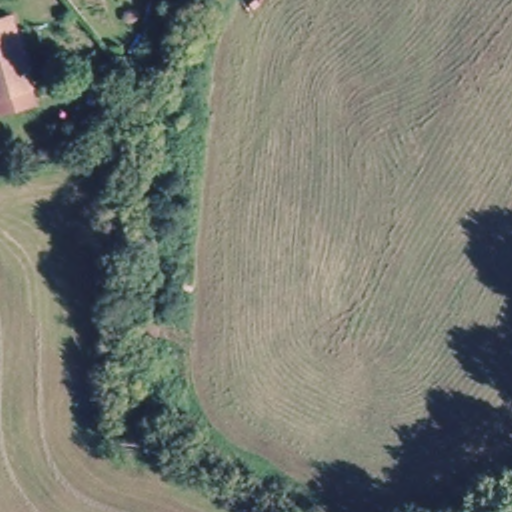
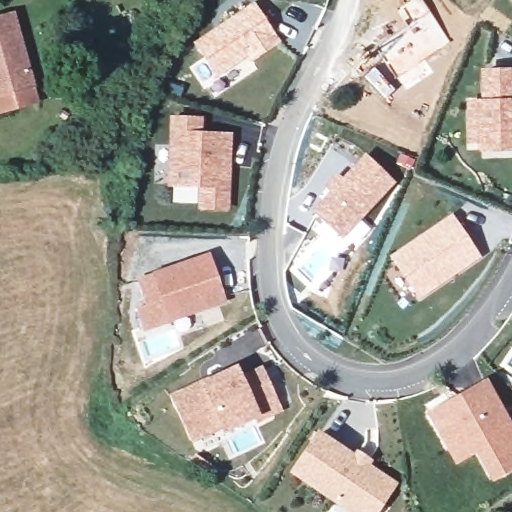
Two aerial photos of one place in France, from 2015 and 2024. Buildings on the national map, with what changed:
new [(512,2),(512,6),(510,5),(512,2)]
new [(279,44),(251,64),(247,59),(214,79),(193,43),(254,3),(279,44)]
unchanged [(0,112),(0,19),(13,16),(33,87),(30,88),(34,103),(0,112)]
new [(434,57),(402,81),(380,52),(411,28),(434,57)]
new [(478,70),(512,70),(512,153),(480,155),(478,144),(467,145),(466,101),(479,101),(478,70)]
new [(203,118),(203,133),(232,133),(231,212),(198,212),(199,189),(167,189),(168,116),(203,118)]
new [(395,183),(342,240),(310,212),(329,193),(323,187),(335,174),(341,178),(363,154),(395,183)]
new [(482,259),(416,301),(387,257),(451,215),(482,259)]
new [(226,301),(144,332),(133,308),(142,304),(134,281),(209,253),(226,301)]
new [(198,381),(235,364),(240,374),(259,366),(282,410),(257,418),(224,435),(220,426),(190,443),(169,396),(198,381)]
new [(512,473),(491,485),(474,456),(455,466),(425,413),(487,380),(512,424),(512,473)]
new [(355,448),(373,458),(369,465),(398,483),(380,512),(345,512),(287,474),(317,431),(352,453),(355,448)]

